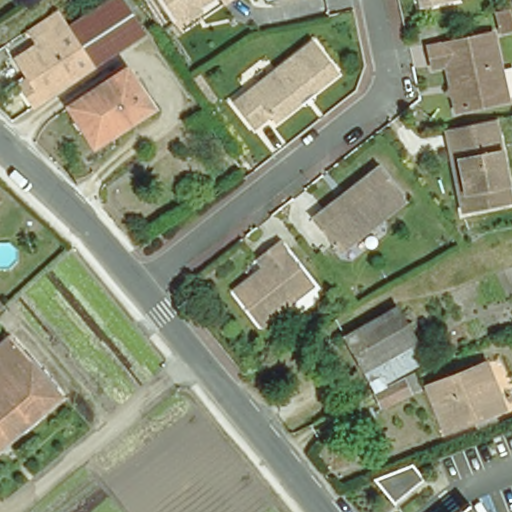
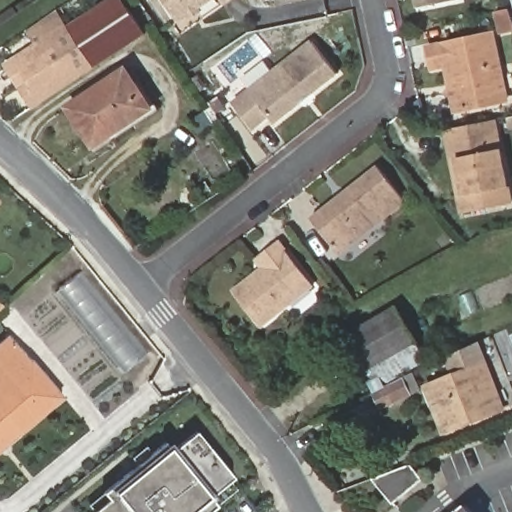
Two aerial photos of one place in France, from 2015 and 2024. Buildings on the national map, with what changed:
unchanged [(123,0),(143,33),(93,65),(93,64),(70,28),(113,0),(123,0)]
unchanged [(172,0),(209,0),(184,18),(172,0)]
unchanged [(223,0),(229,0),(225,3),(223,0)]
unchanged [(417,0),(435,0),(418,3),(417,0)]
unchanged [(512,19),(512,33),(503,35),(496,15),(510,12),(512,19)]
unchanged [(22,82),(33,76),(22,59),(70,28),(93,64),(93,65),(46,97),(36,105),(22,82)]
unchanged [(512,96),(459,106),(451,68),(440,69),(435,47),(497,33),(512,96)]
unchanged [(282,121),(277,114),(260,125),(239,99),(319,38),(345,73),(282,121)]
unchanged [(94,145),(73,110),(70,104),(128,71),(129,74),(150,110),(94,145)]
unchanged [(501,119),(512,174),(512,199),(466,209),(462,187),(455,151),(450,129),(501,119)]
unchanged [(410,197),(344,247),(317,212),(340,195),(345,191),(382,162),(410,197)]
unchanged [(318,286),(264,325),(237,288),(264,270),(255,258),(264,252),(283,237),(318,286)]
new [(125,375),(57,292),(80,273),(147,356),(125,375)]
unchanged [(411,341),(364,371),(345,341),(392,312),(411,341)]
unchanged [(10,337),(60,397),(0,448),(0,345),(10,337)]
new [(444,436),(423,385),(451,373),(445,358),(480,341),(507,411),(444,436)]
demolished [(512,406),(461,427),(444,382),(500,362),(512,393),(512,406)]
unchanged [(381,408),(374,392),(370,382),(381,377),(387,386),(401,379),(409,395),(381,408)]
new [(212,497),(218,506),(210,512),(97,512),(115,497),(112,492),(170,444),(175,449),(197,431),(234,477),(212,497)]
unchanged [(419,481),(398,498),(377,473),(381,472),(405,462),(419,481)]

